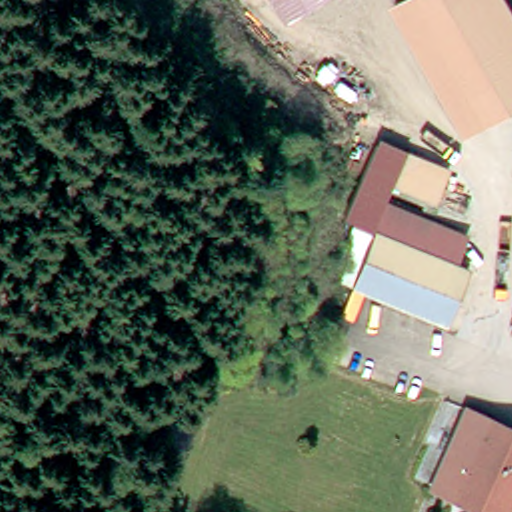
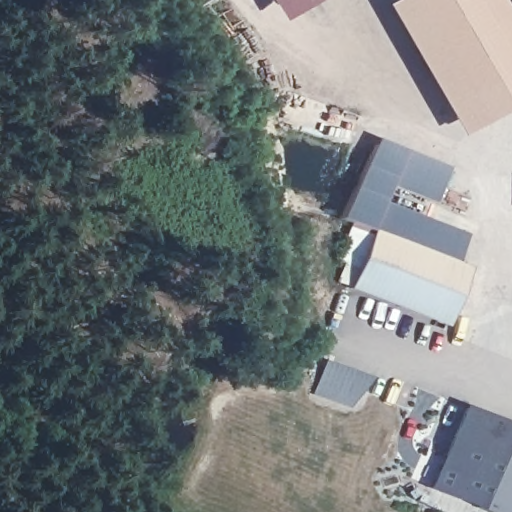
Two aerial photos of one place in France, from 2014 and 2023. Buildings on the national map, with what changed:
unchanged [(284,15),(274,0),(303,0),(305,2),(284,15)]
unchanged [(303,0),(309,0),(305,2),(303,0)]
unchanged [(465,129),(387,0),(388,0),(408,0),(481,119),(465,129)]
unchanged [(408,0),(503,0),(512,15),(512,100),(481,119),(408,0)]
unchanged [(352,220),(382,145),(412,157),(400,186),(402,187),(396,204),(385,232),(382,231),(361,223),(352,220)]
unchanged [(454,174),(442,203),(402,187),(400,186),(412,157),(454,174)]
unchanged [(396,204),(465,230),(455,259),(385,232),(396,204)]
unchanged [(360,289),(349,285),(357,262),(346,258),(361,223),(382,231),(360,289)]
unchanged [(360,289),(382,231),(385,232),(455,259),(478,268),(470,290),(457,326),(426,315),(360,289)]
new [(314,393),(327,360),(373,376),(350,407),(314,393)]
unchanged [(496,512),(435,486),(431,485),(463,408),(489,419),(512,428),(512,490),(503,512),(496,512)]

